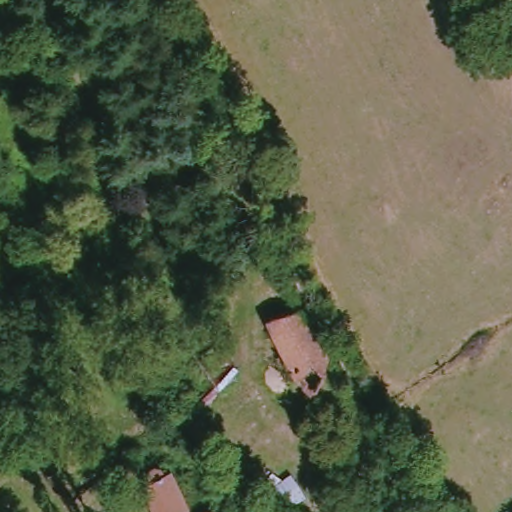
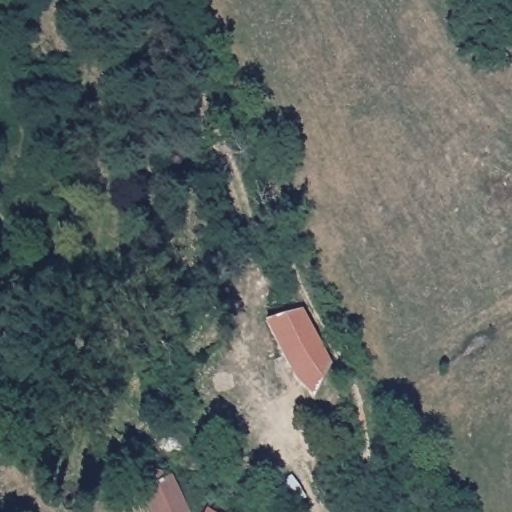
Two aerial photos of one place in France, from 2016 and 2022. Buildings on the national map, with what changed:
unchanged [(266,323),(301,308),(323,352),(320,372),(305,399),(287,380),(266,323)]
unchanged [(318,444),(332,465),(315,479),(302,480),(289,465),(318,444)]
unchanged [(184,506),(175,512),(150,512),(138,491),(148,485),(143,476),(153,470),(157,480),(166,475),(184,506)]
unchanged [(193,504),(207,510),(209,512),(189,512),(193,504)]

